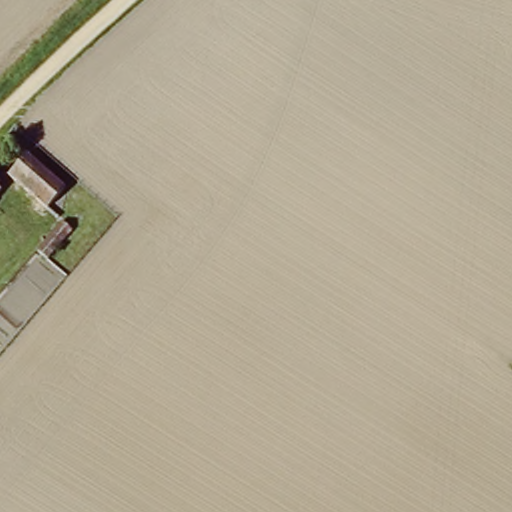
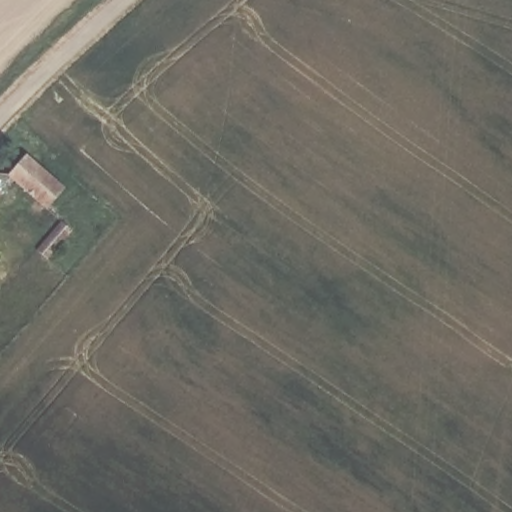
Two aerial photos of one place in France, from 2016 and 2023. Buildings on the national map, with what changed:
unchanged [(63,187),(47,206),(0,166),(0,157),(12,143),(63,187)]
unchanged [(5,185),(0,190),(0,180),(5,185)]
unchanged [(61,221),(72,230),(47,259),(37,250),(61,221)]

